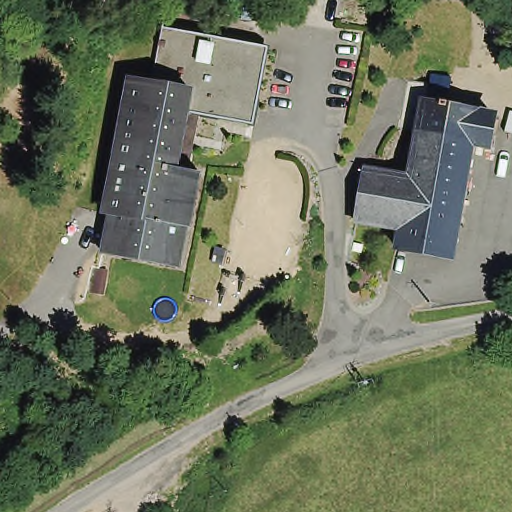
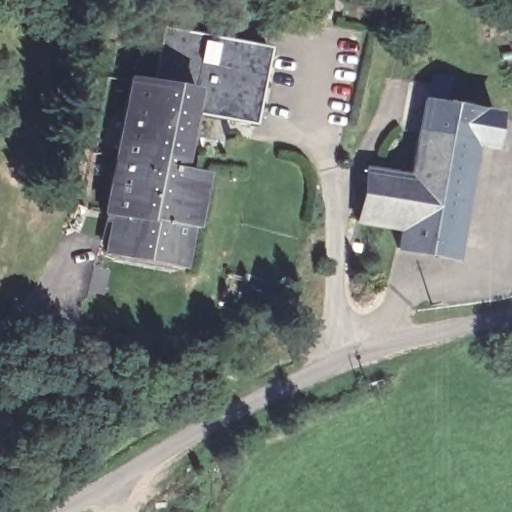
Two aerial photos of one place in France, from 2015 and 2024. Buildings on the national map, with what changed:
unchanged [(180,265),(105,249),(110,216),(103,215),(130,80),(152,85),(160,39),(162,30),(212,40),(270,50),(253,125),(198,115),(189,170),(197,171),(180,265)]
unchanged [(449,261),(392,251),(395,235),(353,223),(347,221),(359,169),(372,171),(406,178),(420,105),(497,118),(490,152),(471,148),(449,261)]

